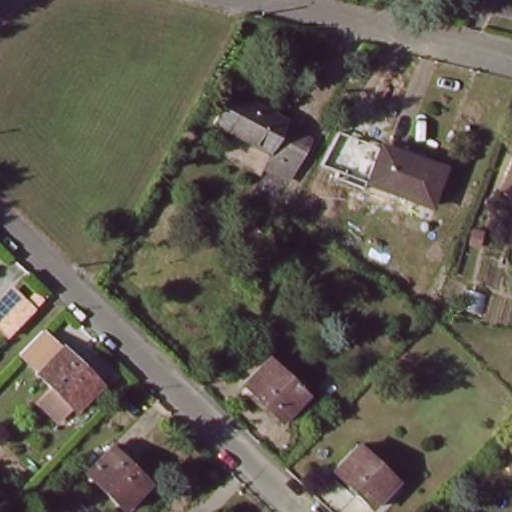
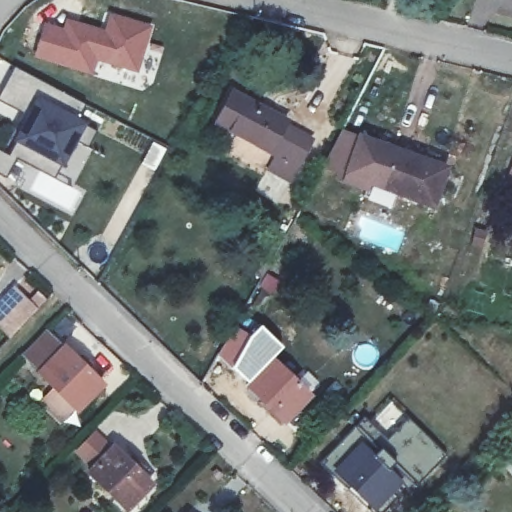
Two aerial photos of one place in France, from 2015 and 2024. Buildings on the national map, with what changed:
new [(63,28),(66,18),(105,30),(110,12),(152,25),(139,72),(96,61),(91,75),(34,56),(46,23),(63,28)]
new [(85,106),(78,118),(87,122),(85,126),(95,130),(88,146),(76,140),(62,167),(55,179),(17,158),(6,178),(0,175),(0,151),(8,155),(15,142),(8,139),(23,114),(0,101),(0,94),(15,68),(85,106)]
unchanged [(295,128),(292,133),(310,143),(295,170),(213,124),(230,93),(295,128)]
unchanged [(450,168),(437,205),(372,182),(385,145),(450,168)]
unchanged [(506,191),(511,178),(512,176),(512,193),(506,191)]
new [(35,315),(15,335),(0,320),(0,310),(17,295),(35,315)]
unchanged [(104,380),(78,406),(40,369),(67,342),(104,380)]
unchanged [(313,393),(287,420),(250,383),(275,357),(313,393)]
unchanged [(397,481),(372,507),(335,471),(360,444),(397,481)]
unchanged [(152,485),(127,511),(89,474),(115,448),(152,485)]

